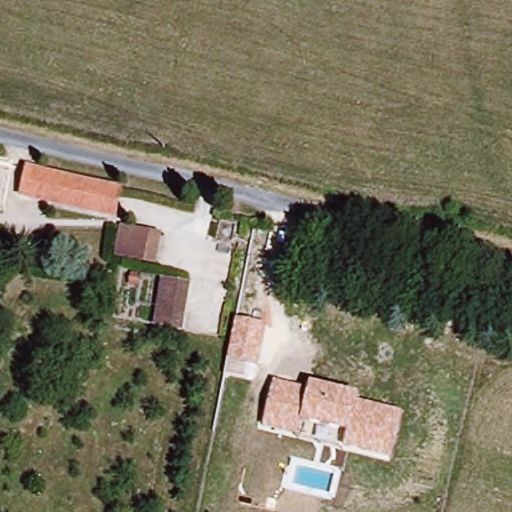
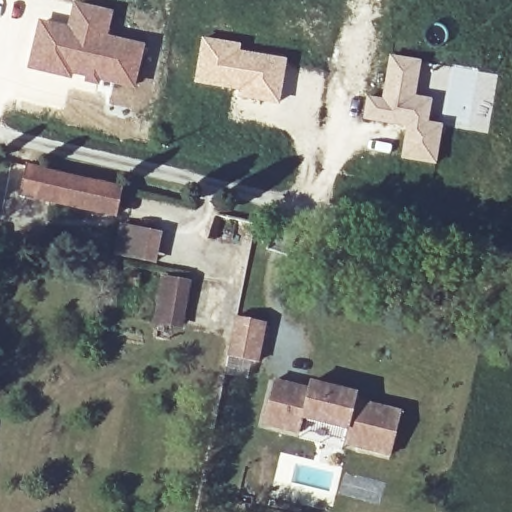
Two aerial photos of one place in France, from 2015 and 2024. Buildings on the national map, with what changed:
new [(36,22),(69,28),(74,5),(110,13),(106,38),(142,46),(132,88),(68,74),(67,78),(27,69),(36,22)]
new [(204,40),(239,45),(237,53),(285,61),(277,102),(240,95),(241,89),(196,81),(204,40)]
new [(368,97),(383,99),(391,56),(420,60),(417,81),(413,81),(410,95),(431,99),(427,122),(442,124),(430,166),(398,161),(408,125),(360,122),(368,97)]
unchanged [(117,216),(18,193),(24,167),(117,187),(117,216)]
unchanged [(155,264),(114,256),(120,224),(162,233),(155,264)]
unchanged [(183,331),(150,326),(160,274),(192,281),(183,331)]
unchanged [(267,323),(259,365),(227,358),(235,316),(267,323)]
unchanged [(308,386),(310,380),(358,392),(357,399),(401,411),(389,459),(343,447),(346,430),(302,420),(299,435),(261,425),(272,378),(308,386)]

